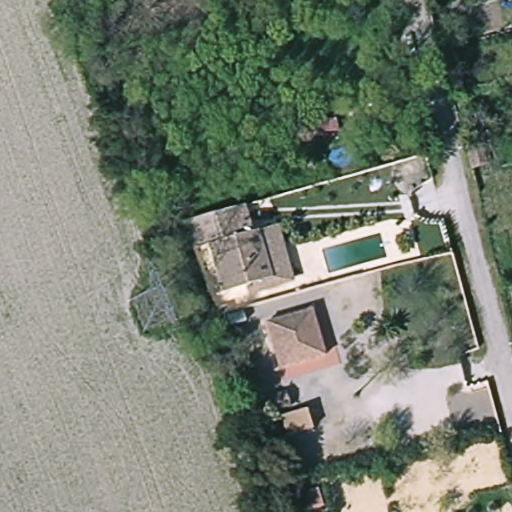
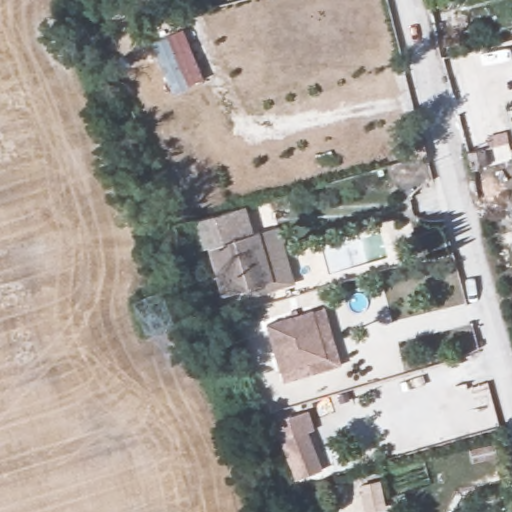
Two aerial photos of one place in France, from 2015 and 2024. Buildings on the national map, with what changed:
new [(151,42),(183,30),(203,80),(173,93),(151,42)]
unchanged [(470,150),(488,146),(492,159),(475,164),(470,150)]
unchanged [(298,285),(251,297),(248,290),(225,297),(211,253),(197,257),(188,227),(251,209),(256,236),(283,231),(298,285)]
unchanged [(313,316),(324,358),(279,371),(267,327),(313,316)]
unchanged [(307,407),(313,426),(286,433),(281,413),(307,407)]

